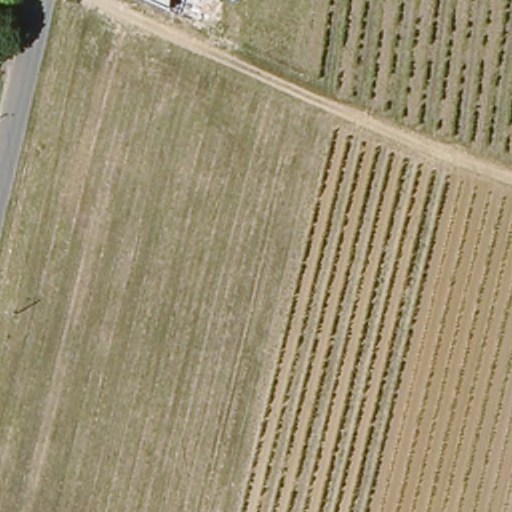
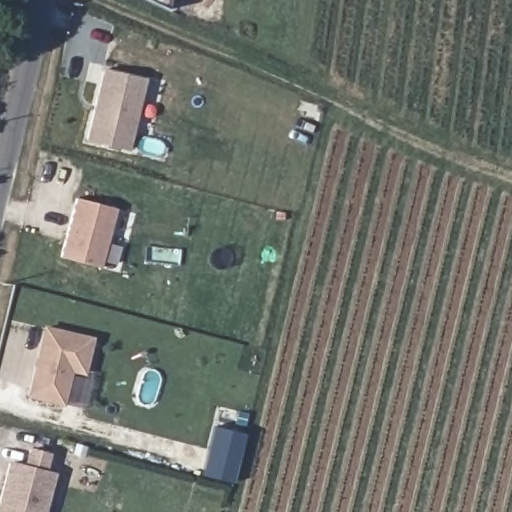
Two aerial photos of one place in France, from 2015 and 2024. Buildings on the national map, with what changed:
unchanged [(144,0),(168,0),(167,11),(144,0)]
new [(130,152),(86,142),(102,69),(146,78),(130,152)]
new [(116,209),(100,267),(60,257),(76,199),(116,209)]
new [(72,369),(63,403),(28,396),(45,328),(92,338),(84,372),(72,369)]
new [(56,472),(46,512),(0,512),(0,498),(9,461),(26,465),(30,447),(51,452),(47,471),(56,472)]

